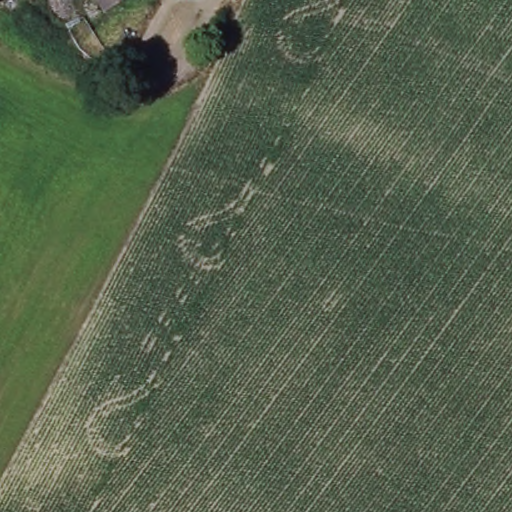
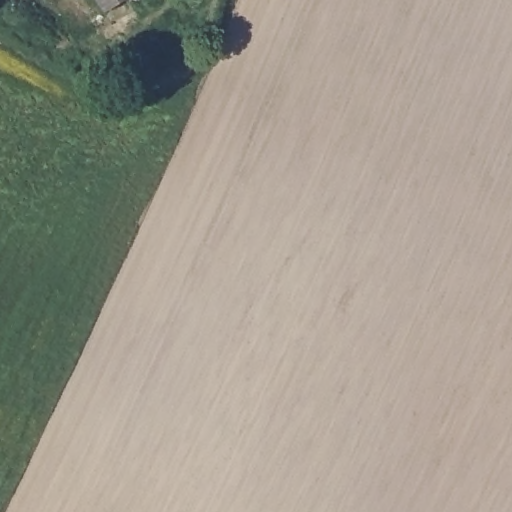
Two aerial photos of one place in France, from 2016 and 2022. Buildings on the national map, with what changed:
unchanged [(102,0),(124,0),(109,11),(102,0)]

